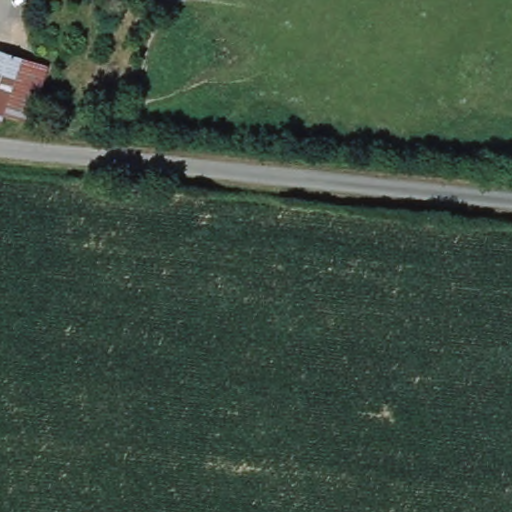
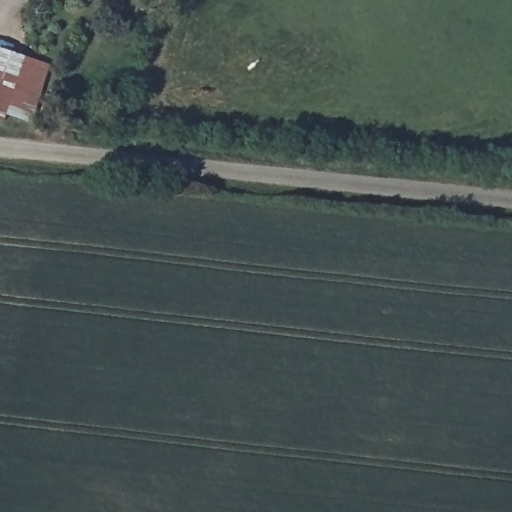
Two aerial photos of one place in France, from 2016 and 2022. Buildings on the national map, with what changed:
unchanged [(1,117),(0,121),(0,52),(45,68),(27,126),(1,117)]

